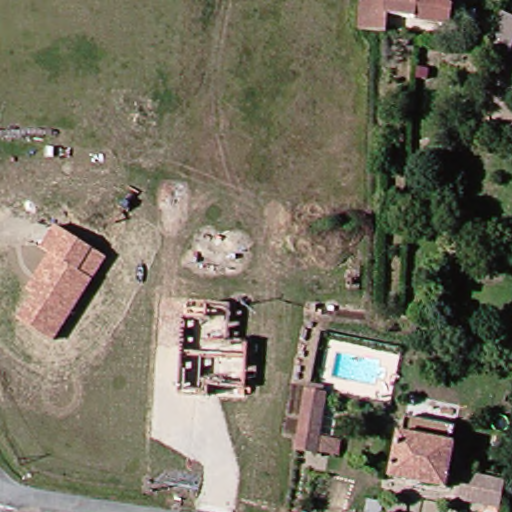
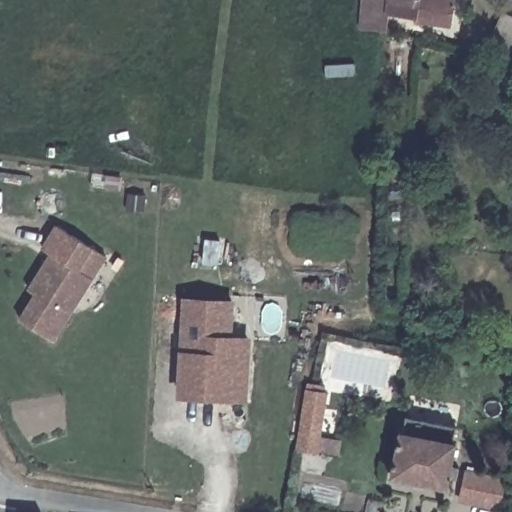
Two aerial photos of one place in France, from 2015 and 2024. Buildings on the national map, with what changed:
unchanged [(355,0),(446,0),(443,17),(408,11),(384,7),(381,26),(376,26),(352,26),(355,0)]
unchanged [(512,26),(512,37),(508,37),(512,26)]
unchanged [(18,317),(35,292),(27,287),(49,252),(40,247),(55,226),(93,249),(107,257),(93,280),(53,342),(18,317)]
new [(234,301),(232,336),(250,337),(246,400),(176,398),(178,352),(181,297),(234,301)]
unchanged [(306,385),(321,387),(312,450),(296,447),(306,385)]
unchanged [(399,415),(449,424),(446,441),(448,441),(439,490),(384,480),(393,431),(396,431),(399,415)]
unchanged [(472,512),(467,511),(472,485),(512,492),(508,512),(472,512)]
unchanged [(383,512),(368,512),(369,503),(384,506),(383,512)]

